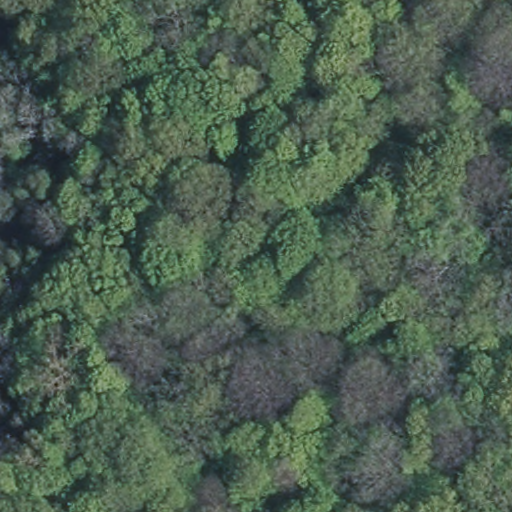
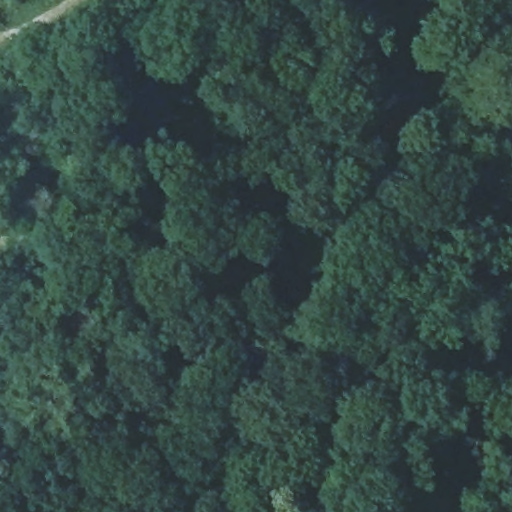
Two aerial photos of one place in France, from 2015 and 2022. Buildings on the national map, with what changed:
[]

